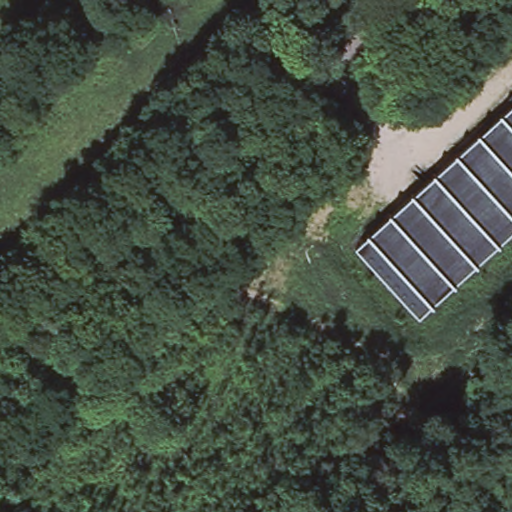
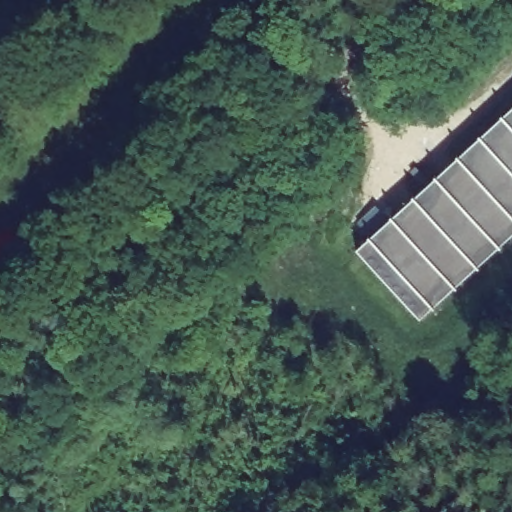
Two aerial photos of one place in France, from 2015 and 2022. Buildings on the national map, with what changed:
unchanged [(363,244),(512,108),(512,236),(429,312),(363,244)]

